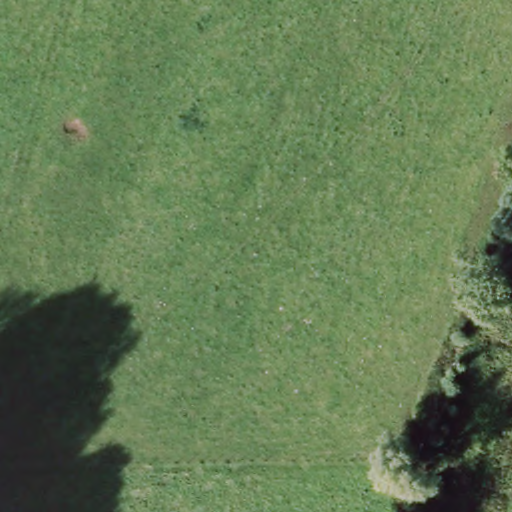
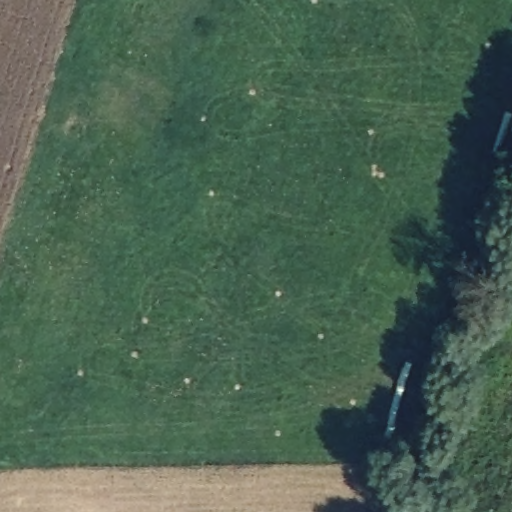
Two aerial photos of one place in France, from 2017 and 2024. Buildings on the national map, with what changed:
[]

